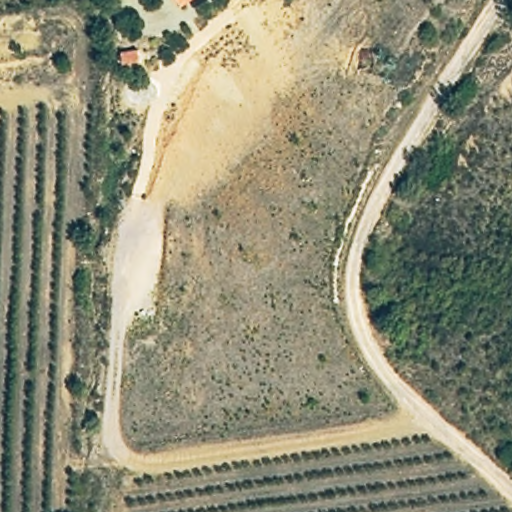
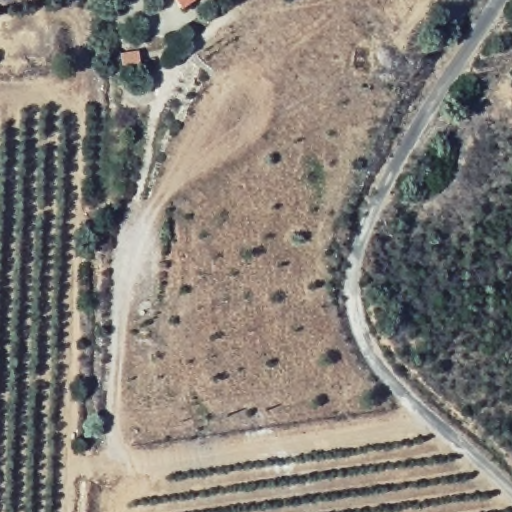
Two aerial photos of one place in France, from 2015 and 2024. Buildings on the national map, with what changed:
unchanged [(181,0),(197,0),(187,2),(181,0)]
unchanged [(142,47),(144,62),(123,66),(120,52),(142,47)]

